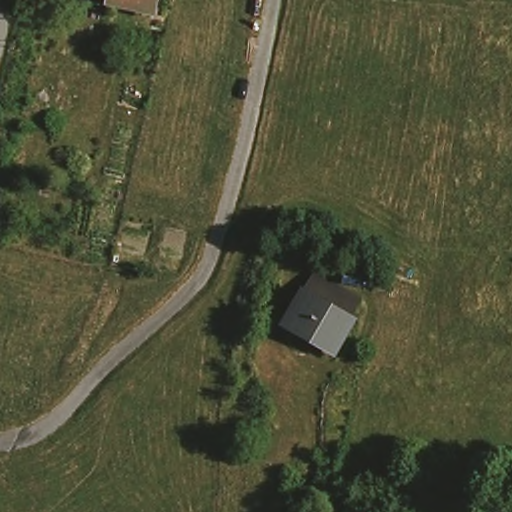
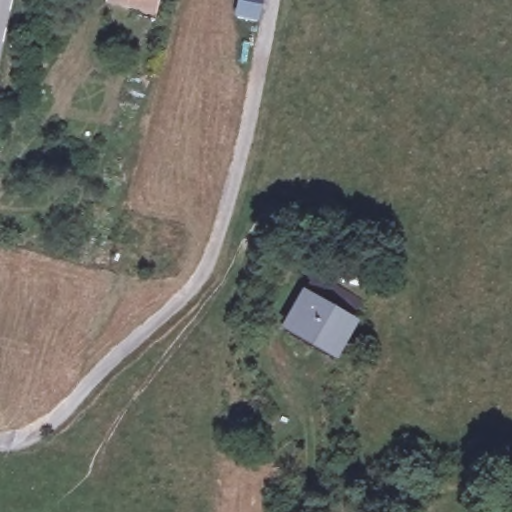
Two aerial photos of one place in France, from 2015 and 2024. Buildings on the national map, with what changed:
unchanged [(140,0),(156,0),(155,3),(140,0)]
unchanged [(368,290),(337,337),(299,312),(329,266),(368,290)]

